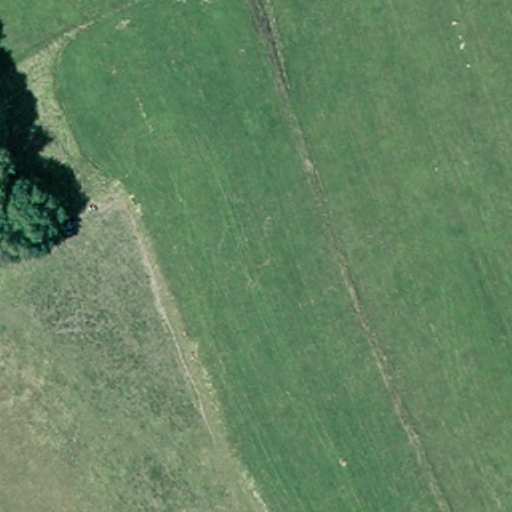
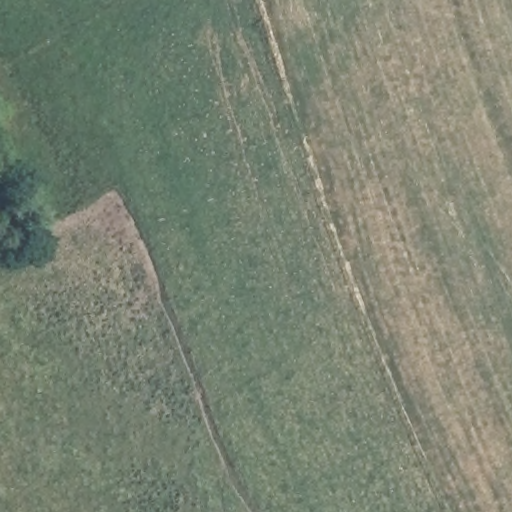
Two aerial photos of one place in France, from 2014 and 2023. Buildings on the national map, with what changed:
[]

